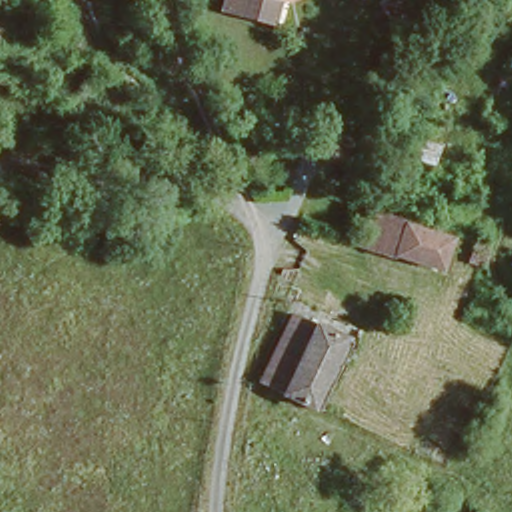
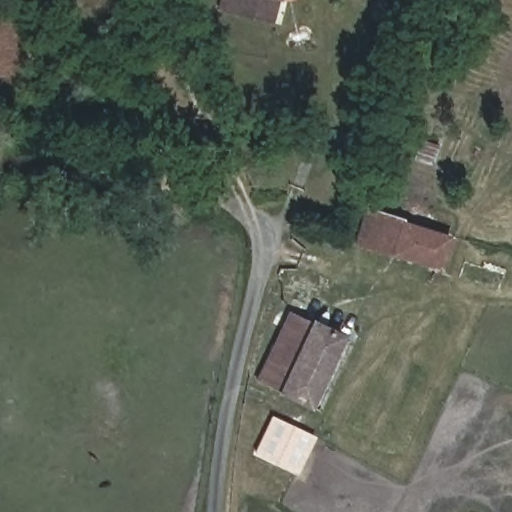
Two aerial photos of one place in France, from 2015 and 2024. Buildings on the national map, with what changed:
unchanged [(221,5),(222,0),(277,0),(274,16),(221,5)]
unchanged [(387,252),(352,243),(361,208),(396,215),(387,252)]
unchanged [(396,215),(449,230),(437,268),(387,252),(396,215)]
unchanged [(465,234),(486,241),(480,262),(460,257),(465,234)]
unchanged [(342,331),(308,403),(255,376),(289,307),(342,331)]
new [(315,439),(299,475),(254,454),(272,416),(315,439)]
unchanged [(475,504),(494,511),(493,512),(472,512),(475,504)]

